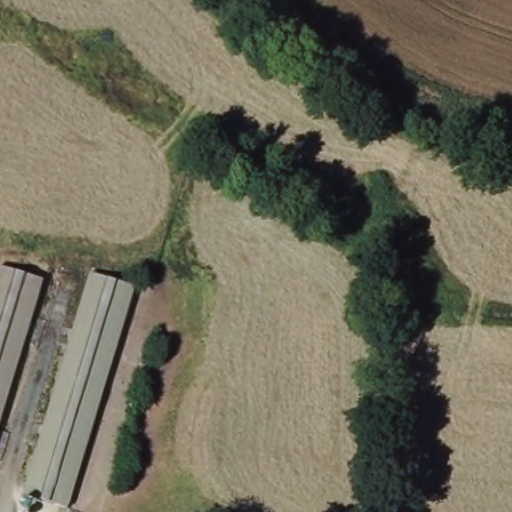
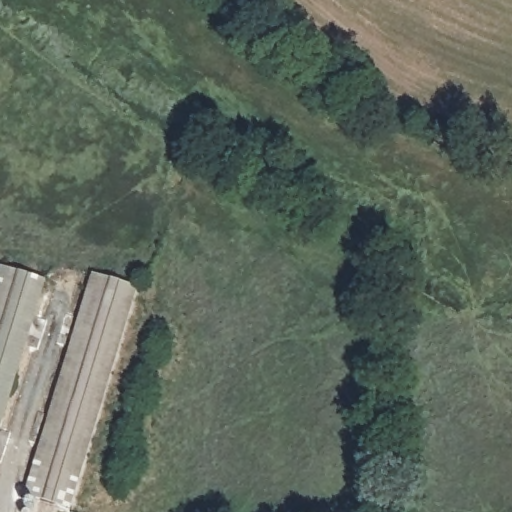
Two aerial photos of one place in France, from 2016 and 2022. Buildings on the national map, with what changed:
unchanged [(0,422),(0,267),(2,261),(45,274),(0,422)]
unchanged [(136,282),(69,503),(25,490),(93,269),(136,282)]

